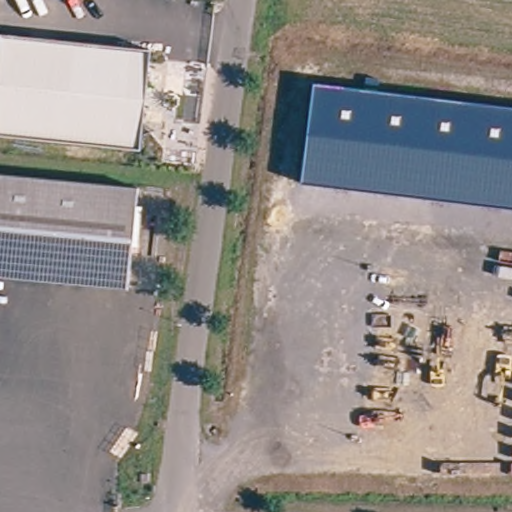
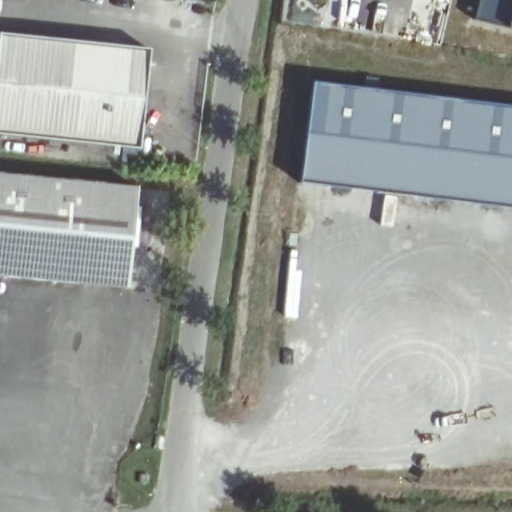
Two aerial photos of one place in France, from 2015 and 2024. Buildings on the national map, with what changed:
new [(512,0),(512,10),(507,28),(474,20),(479,0),(512,0)]
new [(507,28),(512,10),(512,29),(507,28)]
unchanged [(140,149),(0,136),(0,36),(149,50),(140,149)]
unchanged [(512,107),(512,209),(300,184),(313,83),(512,107)]
unchanged [(117,294),(0,282),(0,180),(127,193),(119,284),(117,294)]

